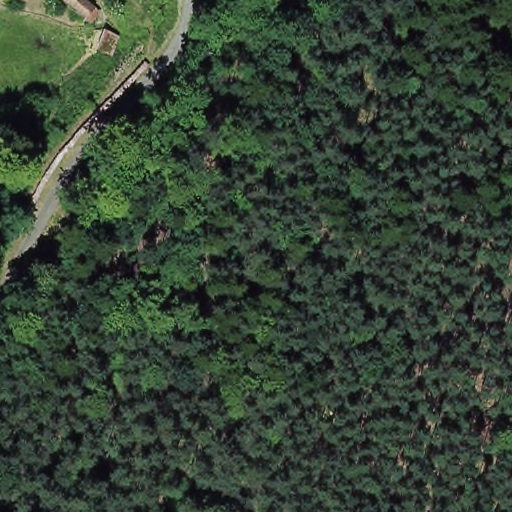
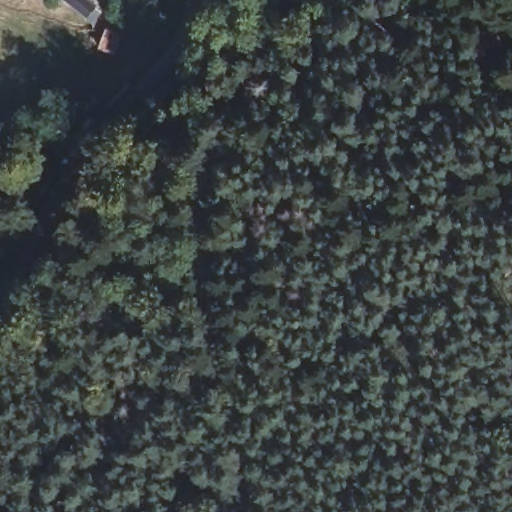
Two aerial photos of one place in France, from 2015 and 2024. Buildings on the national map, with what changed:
unchanged [(91,24),(65,0),(98,0),(106,9),(91,24)]

